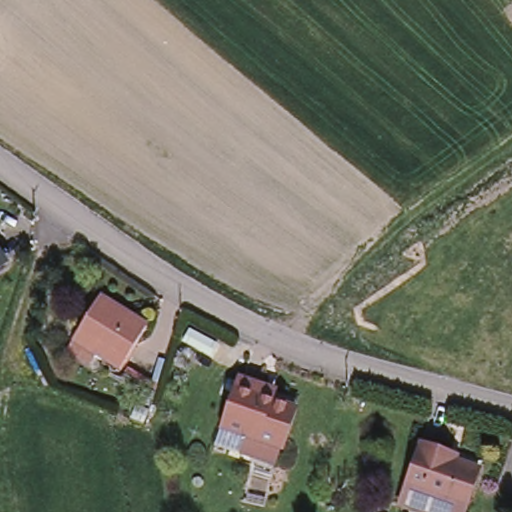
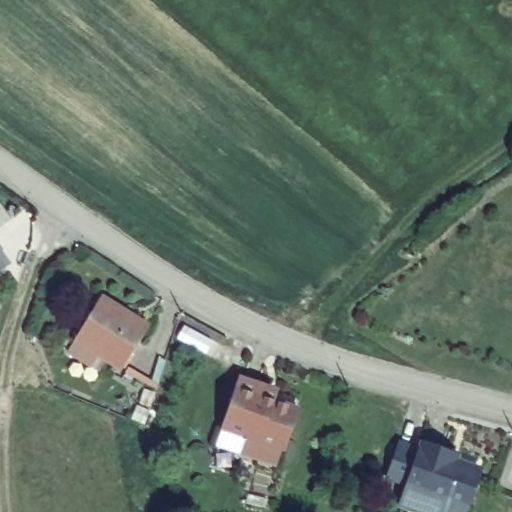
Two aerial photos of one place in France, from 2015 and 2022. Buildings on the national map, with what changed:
unchanged [(0,267),(0,257),(4,263),(0,267)]
unchanged [(148,326),(123,368),(78,340),(102,298),(148,326)]
unchanged [(296,399),(280,448),(226,430),(242,380),(296,399)]
unchanged [(467,509),(408,489),(423,446),(481,466),(467,509)]

